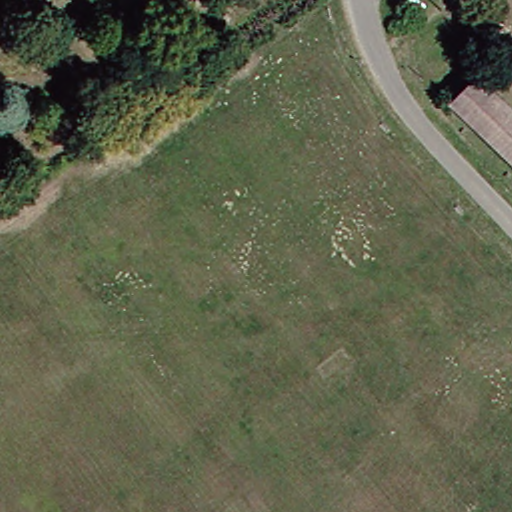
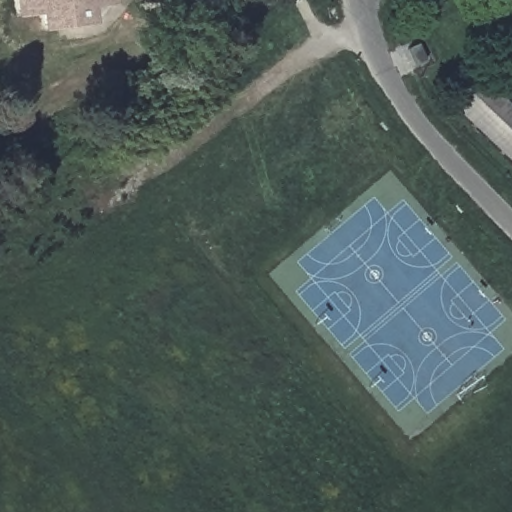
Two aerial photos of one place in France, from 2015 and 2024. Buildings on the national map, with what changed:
new [(48,13),(26,15),(24,0),(122,0),(123,4),(99,6),(100,20),(49,26),(48,13)]
unchanged [(464,75),(512,123),(512,172),(439,101),(464,75)]

